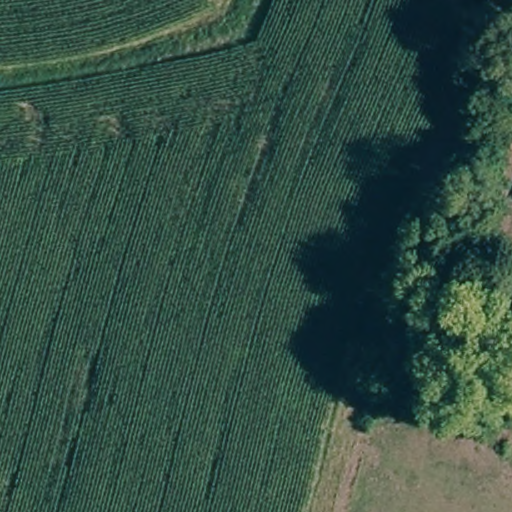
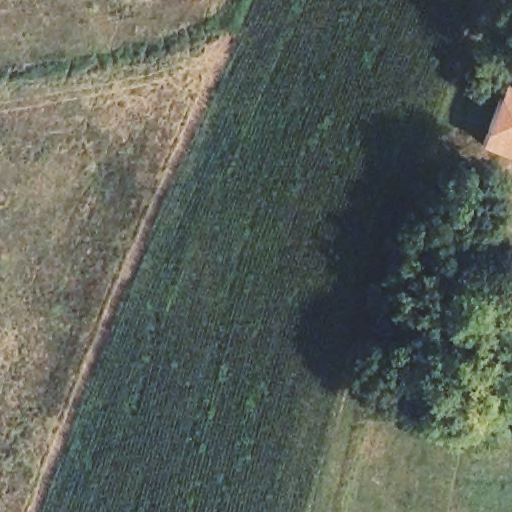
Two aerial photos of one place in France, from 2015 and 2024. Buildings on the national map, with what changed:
new [(504,85),(512,88),(512,158),(480,147),(504,85)]

